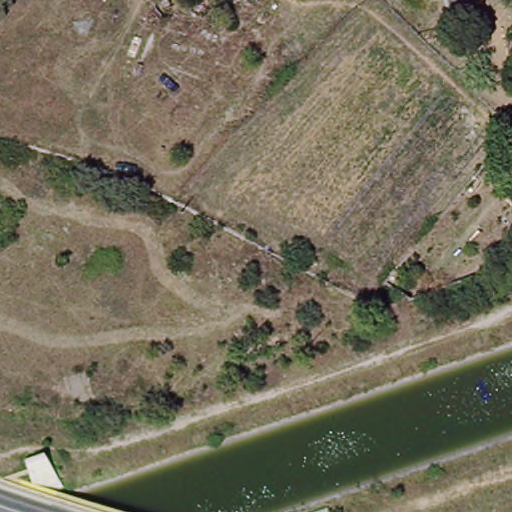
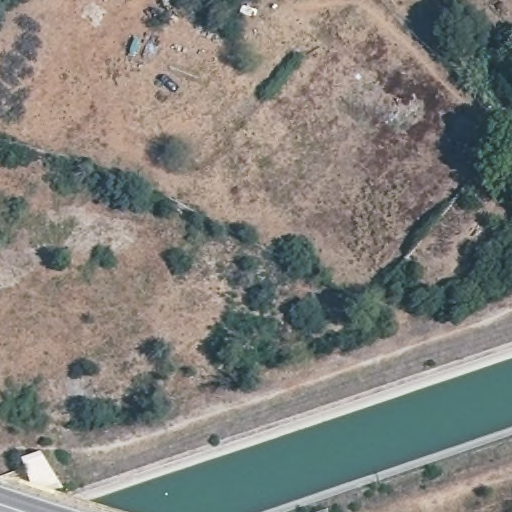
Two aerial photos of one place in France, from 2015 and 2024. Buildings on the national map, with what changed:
unchanged [(512,119),(512,137),(503,130),(512,119)]
unchanged [(22,452),(44,444),(55,476),(33,480),(22,452)]

